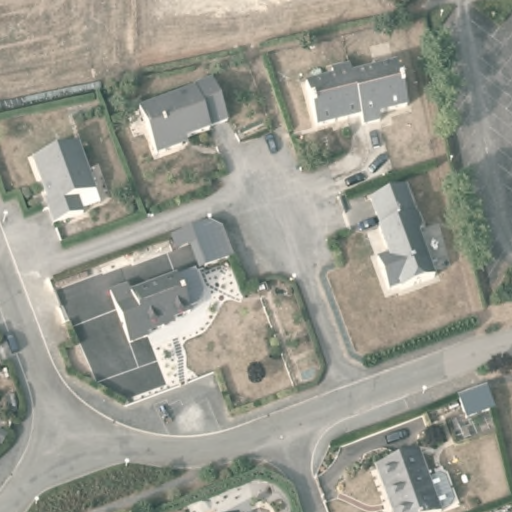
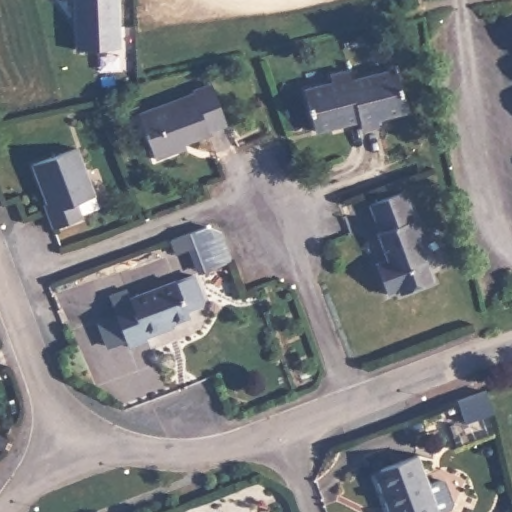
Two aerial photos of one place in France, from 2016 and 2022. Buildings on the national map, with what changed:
new [(74,51),(72,0),(119,0),(121,48),(74,51)]
unchanged [(304,87),(325,79),(324,73),(339,68),(345,78),(389,61),(404,103),(381,112),(382,116),(366,123),(362,113),(318,128),(304,87)]
unchanged [(138,109),(192,89),(192,86),(209,80),(224,119),(208,125),(207,128),(181,138),(178,148),(156,155),(138,109)]
unchanged [(49,220),(46,213),(50,211),(32,163),(76,146),(95,194),(76,201),(82,219),(54,230),(49,220)]
unchanged [(415,217),(418,218),(425,235),(422,241),(436,279),(404,292),(401,288),(387,293),(376,264),(386,259),(377,233),(380,230),(370,203),(404,189),(415,217)]
unchanged [(196,271),(182,231),(196,225),(219,233),(227,260),(196,271)]
unchanged [(164,321),(166,325),(147,331),(149,336),(129,342),(115,304),(133,297),(132,295),(181,277),(193,310),(164,321)]
unchanged [(495,409),(466,417),(460,399),(490,388),(495,409)]
unchanged [(388,505),(393,502),(378,462),(415,449),(438,510),(432,512),(390,512),(388,505)]

